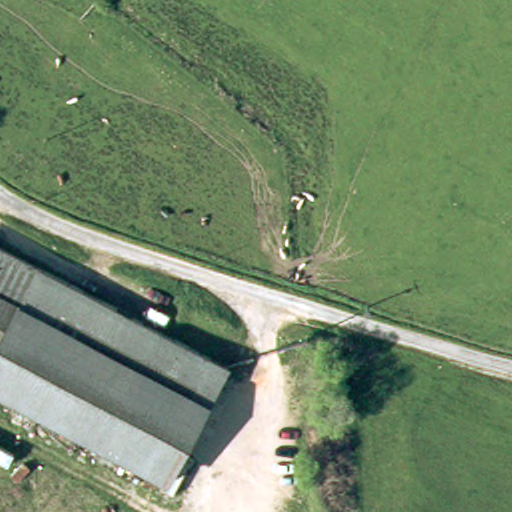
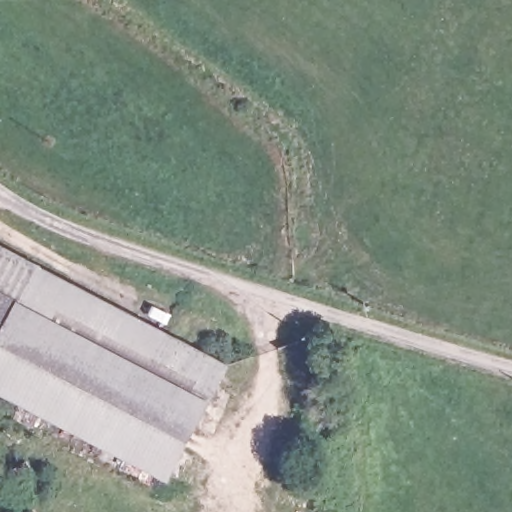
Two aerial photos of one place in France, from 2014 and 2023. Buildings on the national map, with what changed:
unchanged [(170,482),(0,394),(0,250),(231,370),(170,482)]

